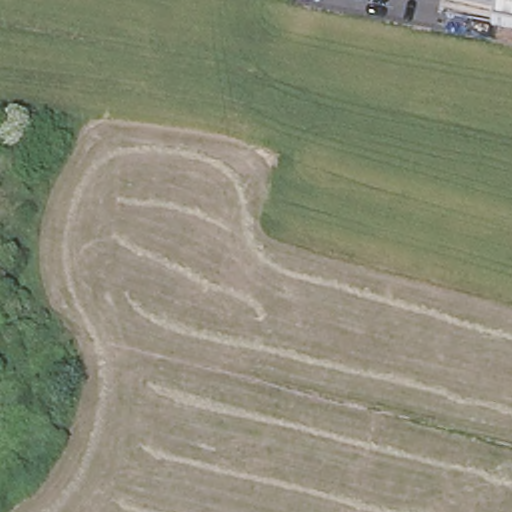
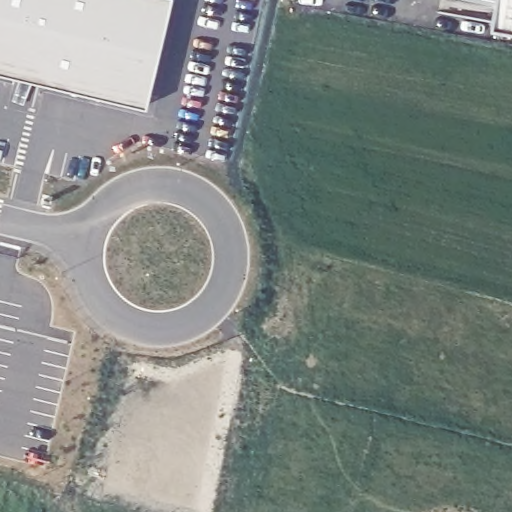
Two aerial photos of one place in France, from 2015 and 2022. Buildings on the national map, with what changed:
new [(152,107),(0,71),(0,0),(174,0),(152,107)]
unchanged [(471,0),(496,0),(496,4),(471,0)]
unchanged [(496,4),(496,0),(512,0),(512,27),(492,23),(496,4)]

